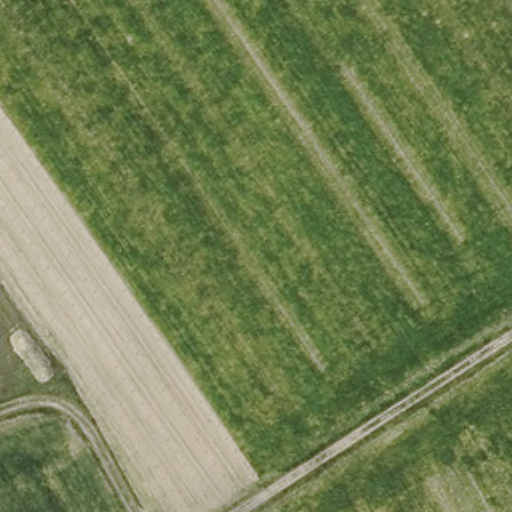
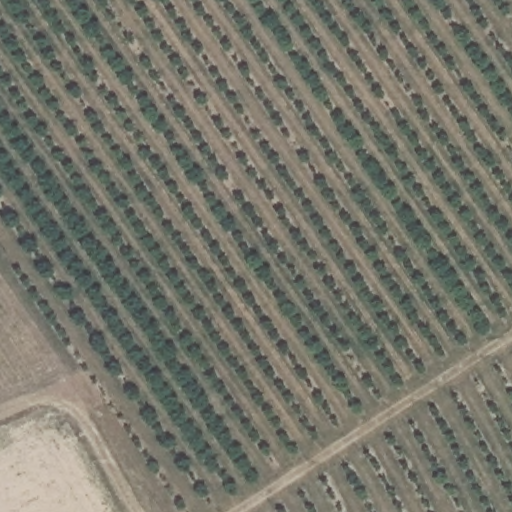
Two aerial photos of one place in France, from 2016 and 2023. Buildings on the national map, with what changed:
[]

